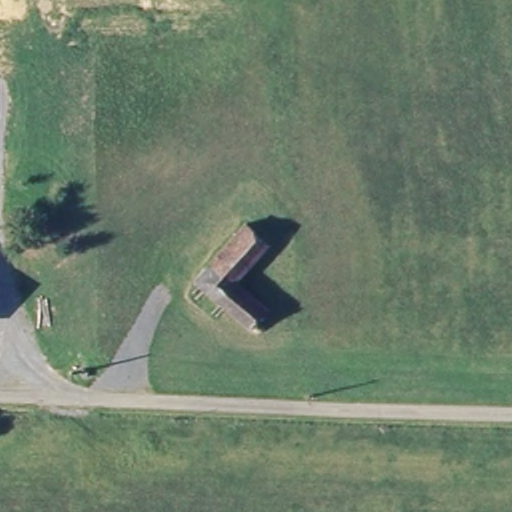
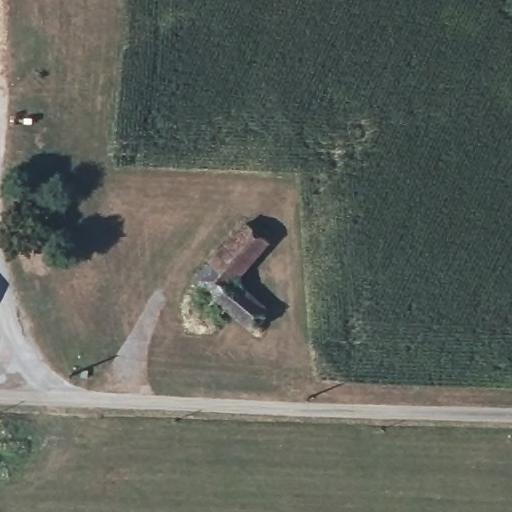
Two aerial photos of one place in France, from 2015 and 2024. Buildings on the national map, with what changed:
unchanged [(241,222),(267,245),(234,282),(266,310),(259,318),(267,325),(257,336),(192,282),(241,222)]

